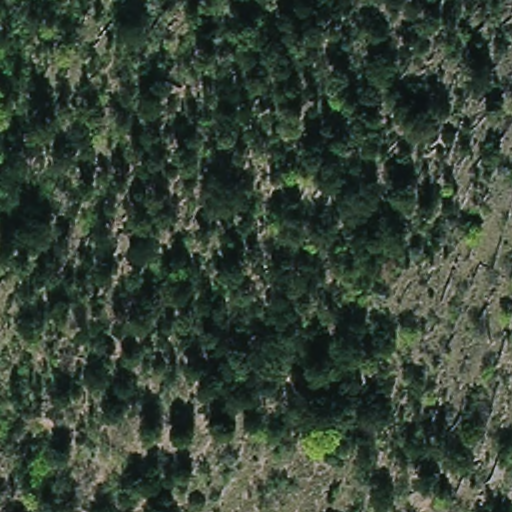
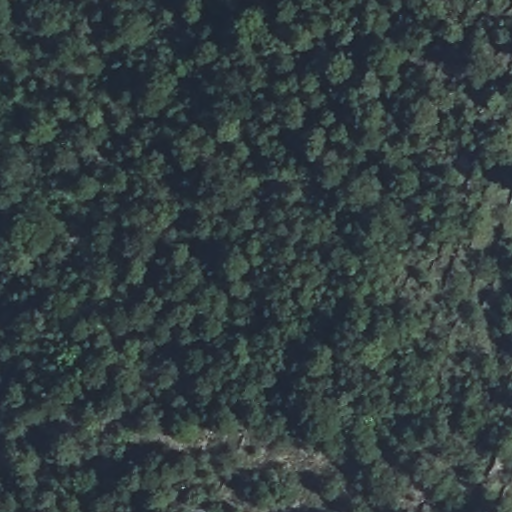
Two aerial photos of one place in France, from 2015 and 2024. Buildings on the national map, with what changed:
[]

